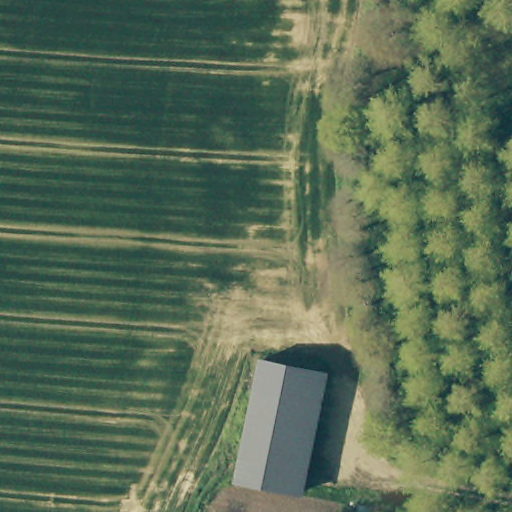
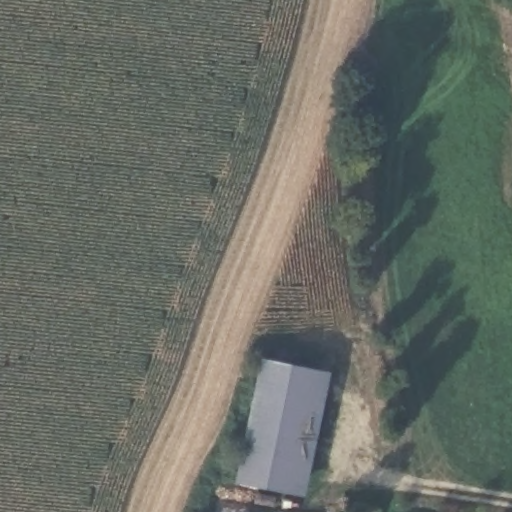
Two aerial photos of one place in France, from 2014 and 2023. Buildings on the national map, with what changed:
unchanged [(260,359),(315,371),(302,444),(263,436),(254,486),(241,483),(260,359)]
unchanged [(263,436),(302,444),(293,494),(254,486),(263,436)]
unchanged [(377,505),(376,512),(355,512),(357,502),(377,505)]

